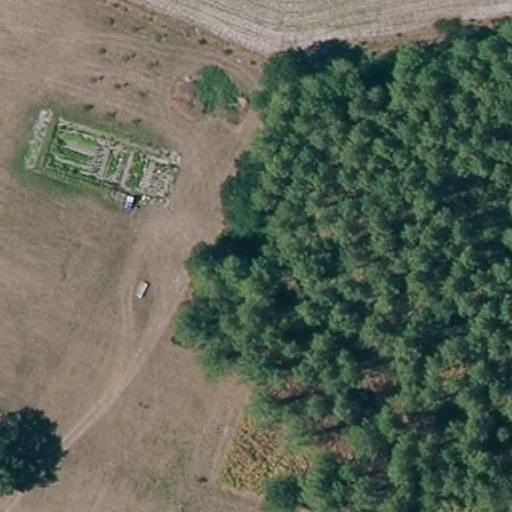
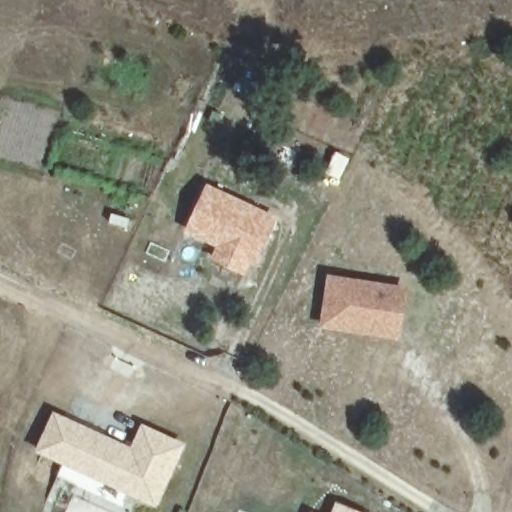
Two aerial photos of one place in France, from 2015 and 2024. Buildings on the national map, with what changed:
new [(206,182),(278,216),(247,279),(207,260),(215,247),(183,230),(206,182)]
new [(408,285),(401,340),(319,329),(327,274),(408,285)]
new [(131,445),(141,422),(187,443),(156,507),(35,451),(53,410),(131,445)]
new [(336,501),(364,512),(331,512),(336,501)]

